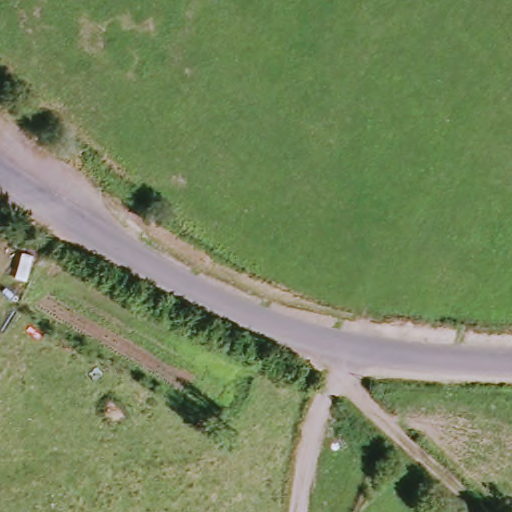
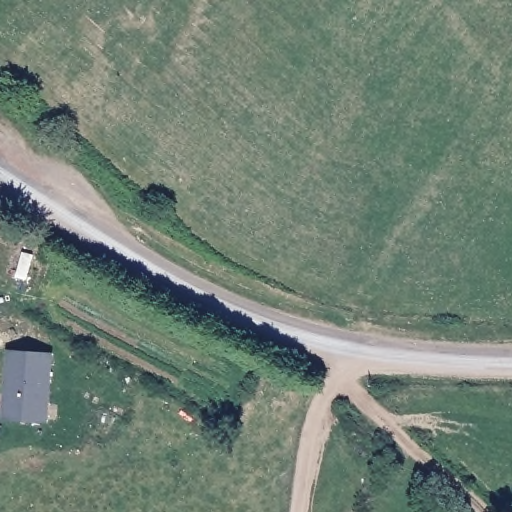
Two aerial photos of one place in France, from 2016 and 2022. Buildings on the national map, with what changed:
new [(3,420),(7,350),(53,353),(49,423),(3,420)]

